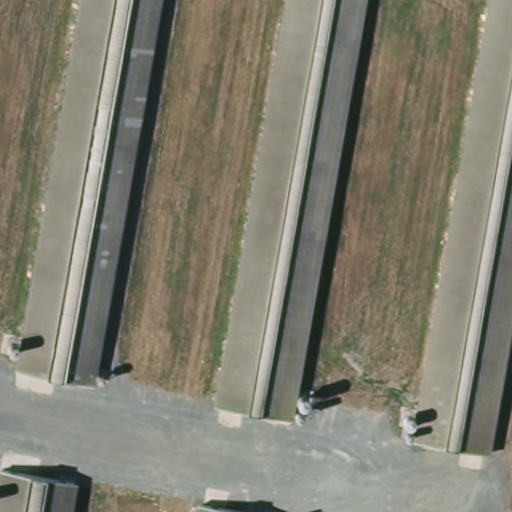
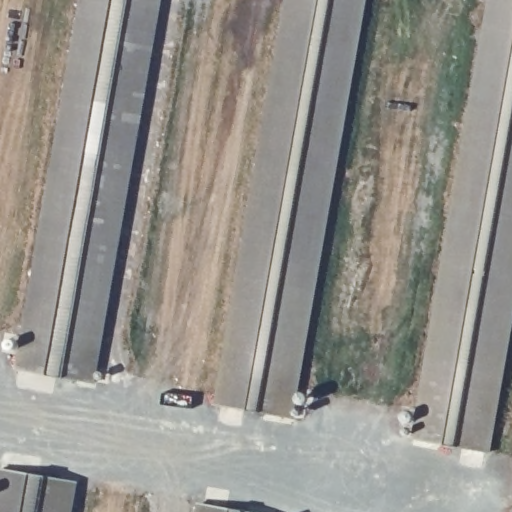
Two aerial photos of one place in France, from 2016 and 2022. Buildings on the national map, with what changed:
unchanged [(164,0),(101,375),(29,363),(90,0),(164,0)]
unchanged [(224,402),(292,0),(364,0),(295,413),(224,402)]
unchanged [(512,0),(512,358),(497,452),(421,440),(493,0),(512,0)]
unchanged [(74,492),(70,512),(0,512),(0,487),(1,481),(74,492)]
unchanged [(203,510),(215,512),(203,512),(203,510)]

